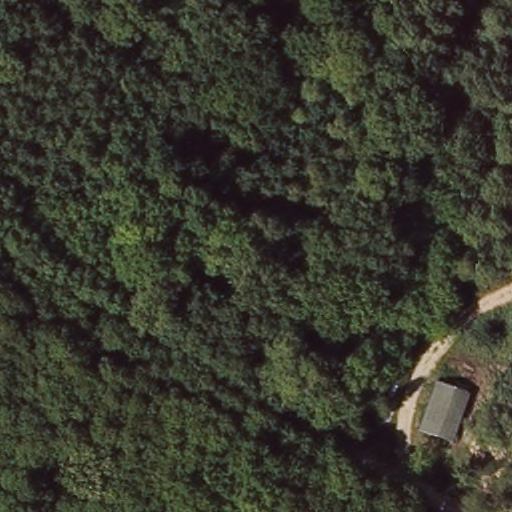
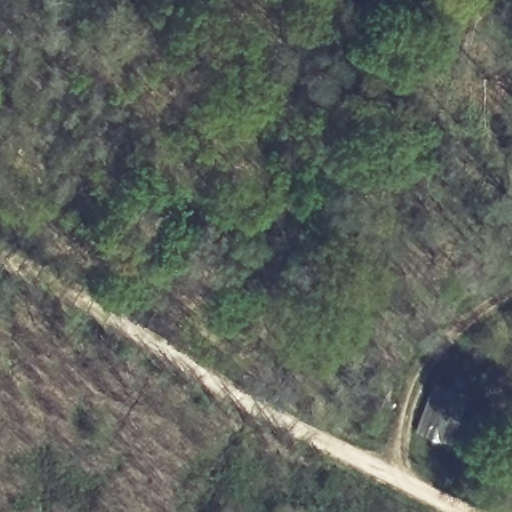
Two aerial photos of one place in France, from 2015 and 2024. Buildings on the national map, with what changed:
unchanged [(472,395),(455,443),(419,430),(436,382),(472,395)]

